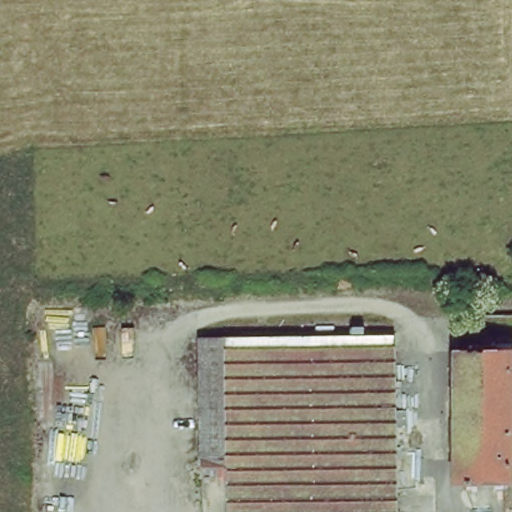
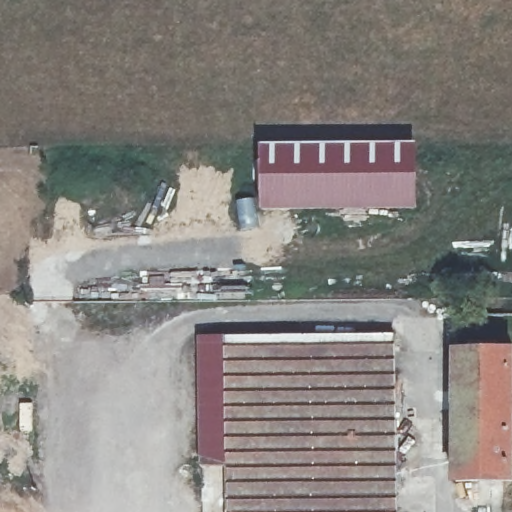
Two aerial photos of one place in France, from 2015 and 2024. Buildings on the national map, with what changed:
new [(238,230),(235,200),(260,198),(258,143),(419,141),(419,211),(360,213),(260,212),(259,228),(238,230)]
unchanged [(391,512),(201,512),(199,337),(390,337),(391,512)]
unchanged [(457,481),(456,351),(468,351),(468,343),(478,343),(478,339),(486,339),(486,344),(497,344),(497,351),(511,351),(511,431),(512,431),(512,482),(457,481)]

